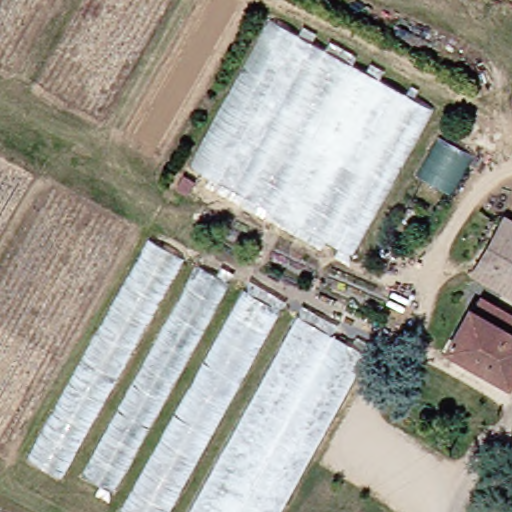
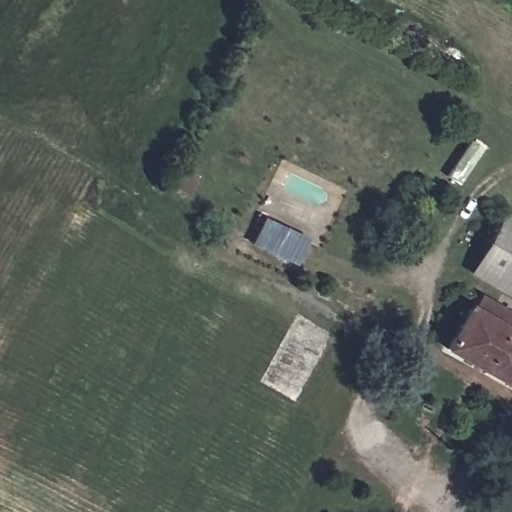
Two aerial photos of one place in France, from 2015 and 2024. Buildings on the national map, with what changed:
demolished [(337,264),(185,177),(275,7),(429,98),(337,264)]
unchanged [(511,204),(512,205),(512,241),(494,230),(511,204)]
unchanged [(494,230),(512,241),(512,306),(465,278),(494,230)]
demolished [(57,477),(25,456),(144,240),(176,260),(57,477)]
unchanged [(445,264),(433,256),(443,243),(453,251),(445,264)]
demolished [(105,490),(75,471),(192,266),(222,281),(105,490)]
demolished [(114,512),(246,282),(275,300),(154,512),(114,512)]
unchanged [(447,349),(470,307),(476,311),(484,297),(497,305),(512,315),(512,389),(510,387),(447,349)]
demolished [(361,348),(271,512),(186,512),(298,309),(361,348)]

